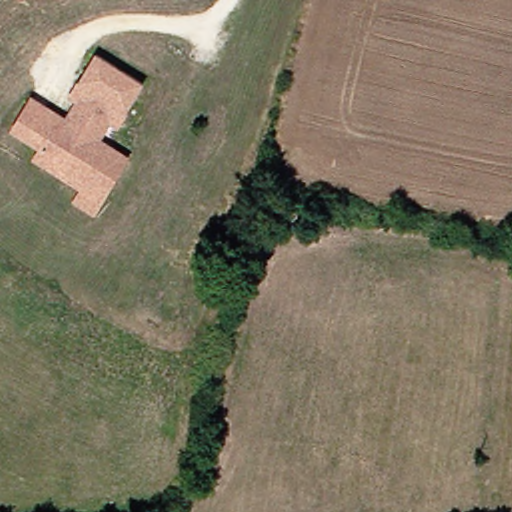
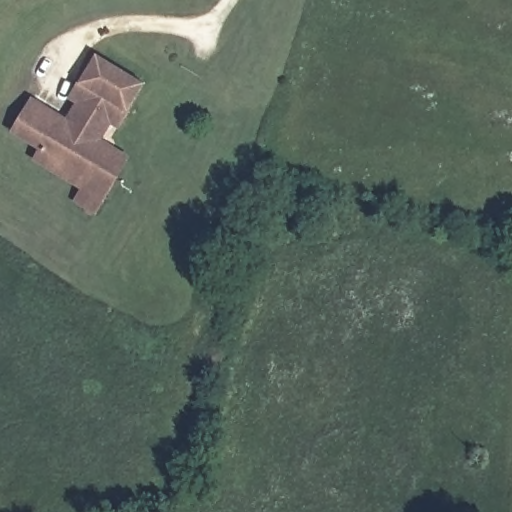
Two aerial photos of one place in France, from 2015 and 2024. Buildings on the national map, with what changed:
unchanged [(65,116),(74,102),(68,98),(95,54),(145,84),(120,126),(114,124),(104,139),(65,116)]
unchanged [(44,153),(9,132),(30,96),(65,116),(44,153)]
unchanged [(99,213),(81,202),(88,191),(39,160),(44,153),(65,116),(104,139),(115,146),(130,156),(105,202),(117,210),(111,220),(99,213)]
unchanged [(301,216),(290,235),(265,224),(279,195),(292,200),(288,210),(301,216)]

